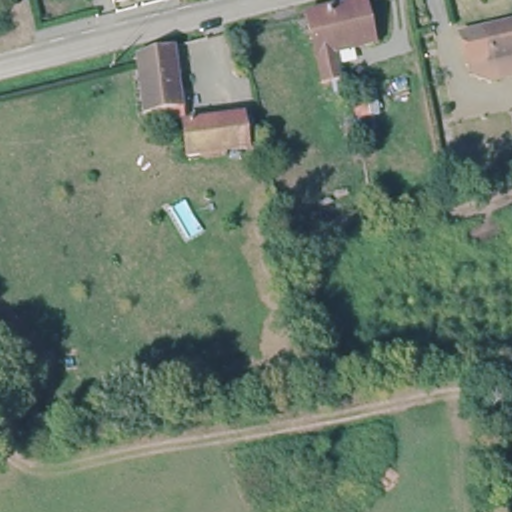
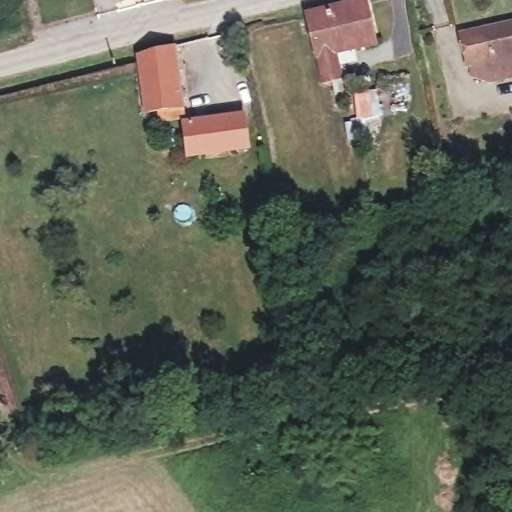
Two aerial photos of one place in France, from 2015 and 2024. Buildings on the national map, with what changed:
unchanged [(112,0),(136,0),(114,5),(112,0)]
unchanged [(374,0),(383,40),(342,49),(348,74),(346,75),(350,86),(338,90),(335,78),(326,79),(307,7),(334,0),(374,0)]
unchanged [(468,64),(461,31),(512,21),(512,55),(468,64)]
unchanged [(180,45),(190,119),(185,120),(164,122),(162,111),(149,113),(138,52),(180,45)]
unchanged [(487,81),(469,73),(468,64),(512,55),(512,76),(487,81)]
unchanged [(190,119),(250,111),(256,150),(190,158),(185,120),(190,119)]

